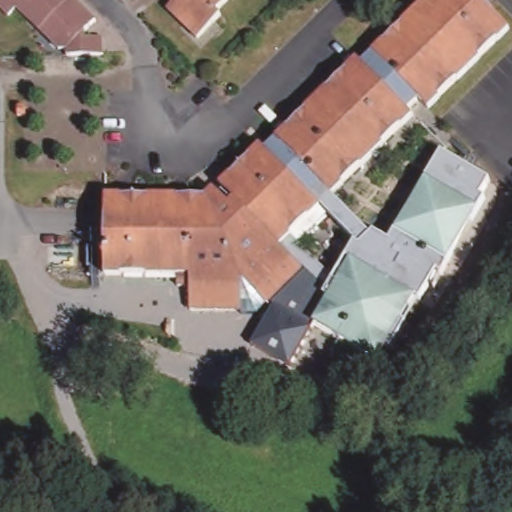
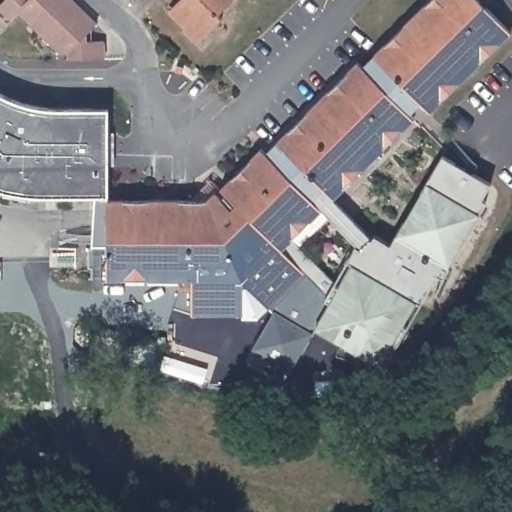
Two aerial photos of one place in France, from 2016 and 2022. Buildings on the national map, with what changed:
unchanged [(0,15),(0,10),(10,0),(28,0),(30,2),(32,0),(67,0),(96,29),(87,38),(87,47),(105,47),(105,64),(68,64),(68,57),(59,58),(16,16),(9,23),(0,15)]
unchanged [(493,182),(485,198),(490,200),(476,224),(471,221),(447,277),(441,274),(425,303),(420,301),(407,324),(412,326),(395,355),(391,353),(384,365),(318,328),(335,300),(308,273),(262,319),(246,319),(246,315),(196,315),(196,291),(184,290),(184,280),(111,279),(96,279),(96,269),(93,269),(93,248),(102,248),(111,248),(110,244),(110,199),(212,199),(221,192),(220,191),(266,148),(270,152),(276,148),(363,63),(366,67),(435,0),(484,0),(512,29),(512,36),(433,113),(424,104),(415,113),(419,119),(336,199),(375,239),(378,236),(394,245),(406,222),(423,193),(445,155),(493,182)]
unchanged [(217,14),(222,18),(199,42),(166,11),(178,0),(231,0),(217,14)]
new [(2,94),(13,100),(27,106),(37,108),(45,108),(106,108),(107,196),(110,199),(110,244),(111,248),(102,248),(93,248),(92,244),(95,194),(35,195),(10,191),(0,188),(0,93),(2,94)]
demolished [(20,110),(27,110),(26,119),(20,119),(20,110)]
unchanged [(278,385),(244,363),(248,345),(262,319),(308,273),(335,300),(318,328),(287,372),(278,385)]

